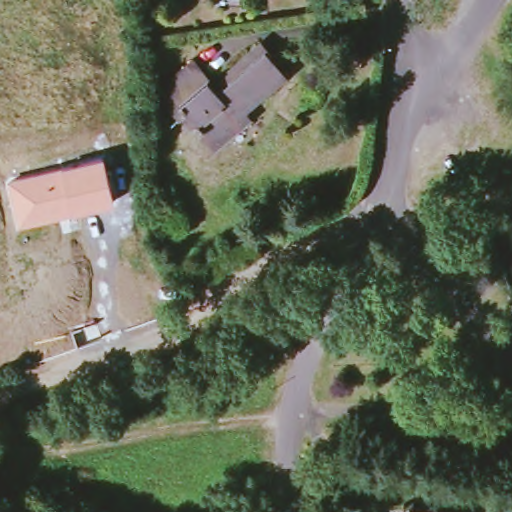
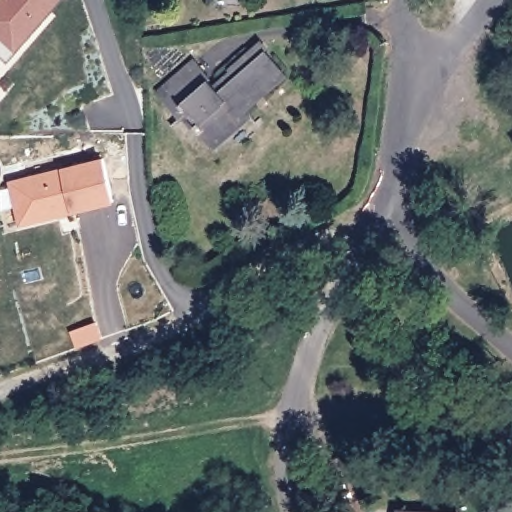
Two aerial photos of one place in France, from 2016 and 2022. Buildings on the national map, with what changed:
new [(0,0),(63,0),(7,62),(0,56),(0,0)]
unchanged [(162,90),(198,57),(222,81),(238,67),(237,65),(255,47),(265,39),(270,45),(290,66),(252,102),(257,108),(224,140),(194,110),(187,115),(162,90)]
unchanged [(19,227),(7,183),(63,167),(104,156),(115,200),(73,211),(19,227)]

